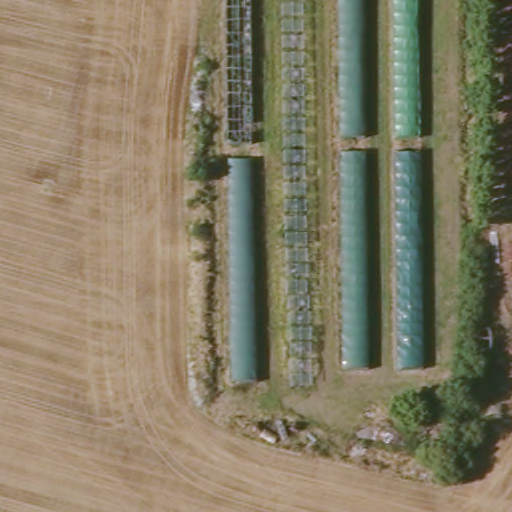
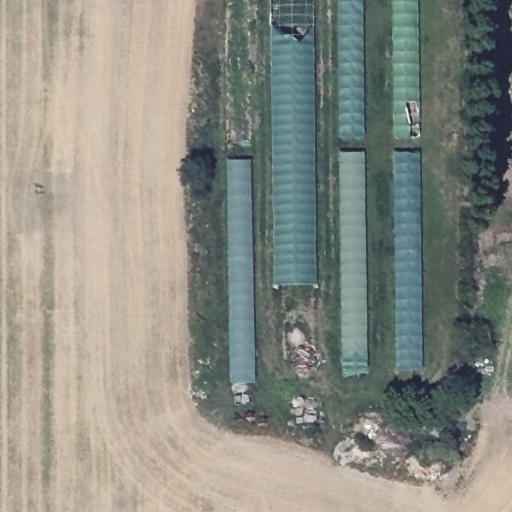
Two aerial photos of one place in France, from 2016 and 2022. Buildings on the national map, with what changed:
unchanged [(227,0),(252,0),(254,143),(229,144),(227,0)]
new [(275,286),(271,0),(314,0),(317,285),(275,286)]
unchanged [(340,0),(366,0),(366,137),(340,137),(340,0)]
unchanged [(395,0),(421,0),(422,138),(396,139),(395,0)]
unchanged [(502,194),(500,0),(512,0),(512,193),(502,194)]
unchanged [(396,153),(423,153),(425,370),(398,370),(396,153)]
unchanged [(342,154),(367,154),(370,370),(344,371),(342,154)]
unchanged [(231,161),(253,160),(255,384),(232,383),(231,161)]

